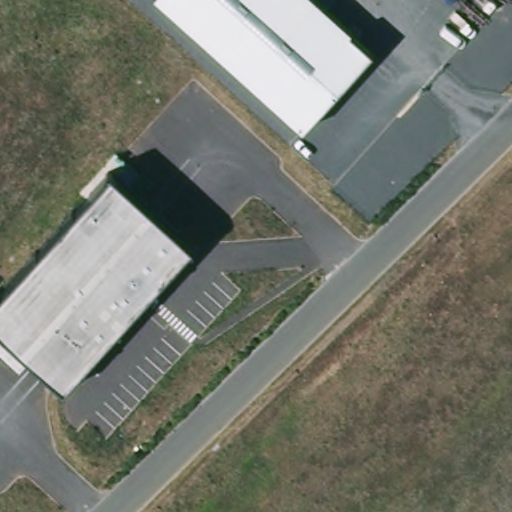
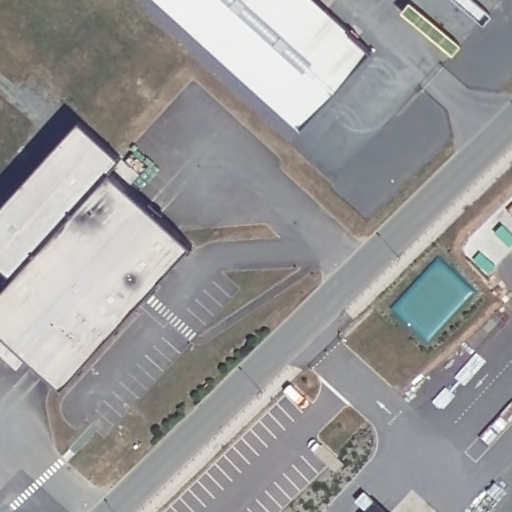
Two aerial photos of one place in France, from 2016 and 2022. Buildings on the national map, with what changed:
unchanged [(160,0),(318,0),(351,31),(349,33),(372,54),(302,128),(160,0)]
new [(0,208),(66,135),(79,121),(123,159),(110,174),(15,277),(0,263),(0,208)]
unchanged [(18,369),(0,353),(0,334),(1,333),(0,331),(0,293),(110,174),(190,246),(61,386),(29,358),(18,369)]

